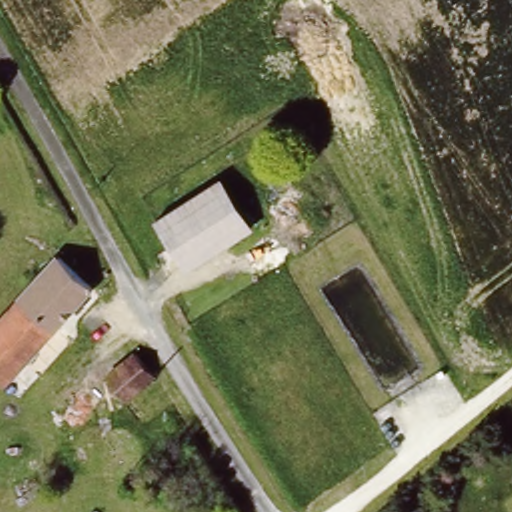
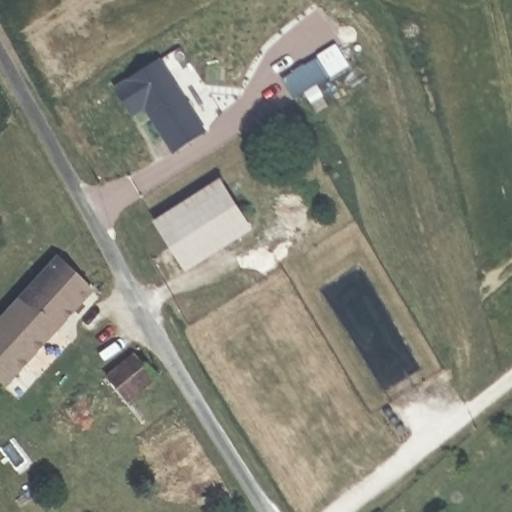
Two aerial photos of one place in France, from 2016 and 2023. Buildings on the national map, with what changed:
new [(174,155),(146,110),(135,116),(115,86),(161,57),(208,131),(174,155)]
unchanged [(161,220),(225,185),(252,235),(186,269),(161,220)]
unchanged [(90,299),(0,368),(0,316),(65,267),(90,299)]
unchanged [(124,399),(115,405),(101,387),(146,349),(162,367),(146,381),(155,394),(134,411),(124,399)]

